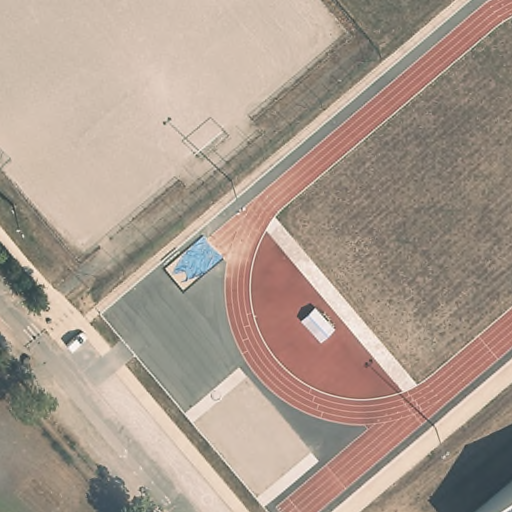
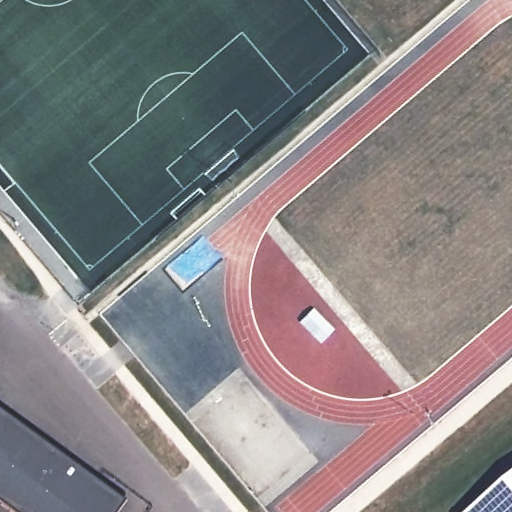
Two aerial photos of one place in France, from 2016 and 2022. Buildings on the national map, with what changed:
demolished [(512,49),(487,18),(508,0),(512,0),(512,49)]
new [(65,455),(23,512),(16,512),(0,500),(0,408),(65,455)]
new [(118,512),(23,512),(65,455),(126,501),(118,512)]
unchanged [(512,512),(479,512),(512,484),(512,512)]

